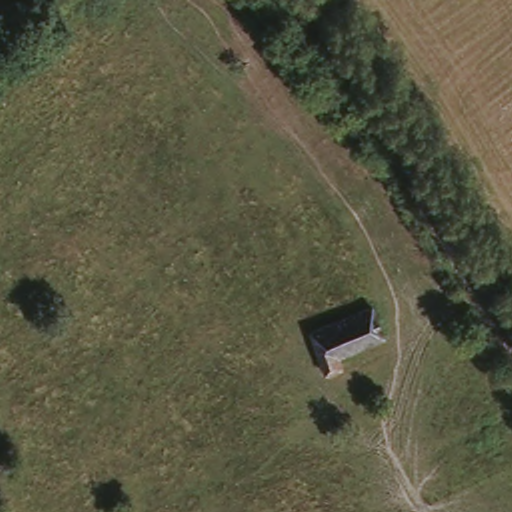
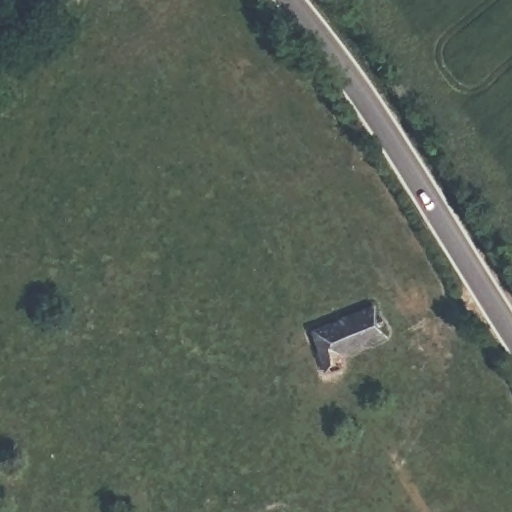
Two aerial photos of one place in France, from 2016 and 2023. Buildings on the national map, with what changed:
unchanged [(376,335),(336,365),(343,375),(330,384),(304,348),(357,306),(376,335)]

